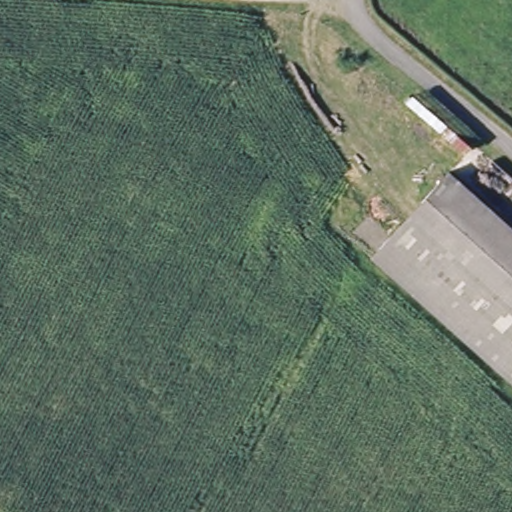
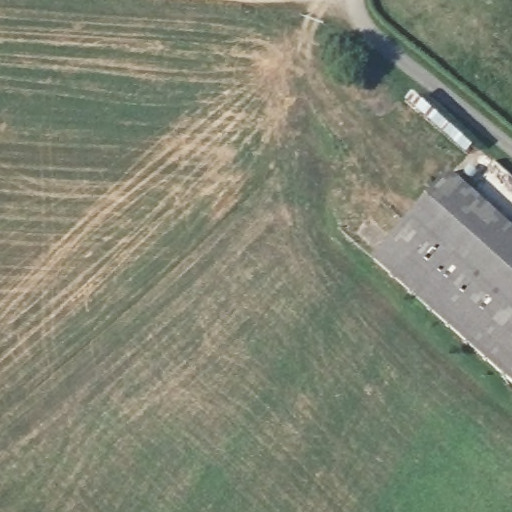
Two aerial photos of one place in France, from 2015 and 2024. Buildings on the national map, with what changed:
unchanged [(426,204),(447,180),(467,196),(512,233),(512,383),(372,267),(426,204)]

